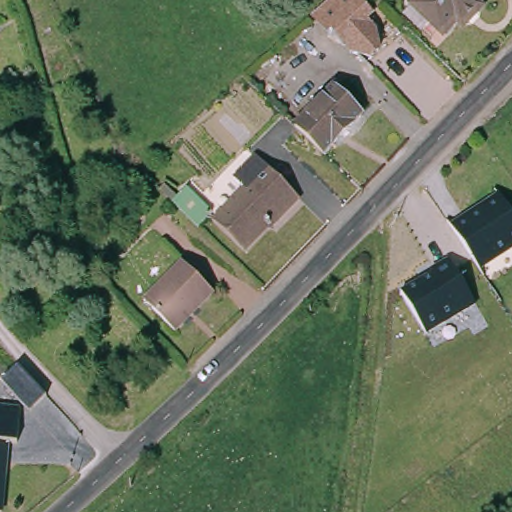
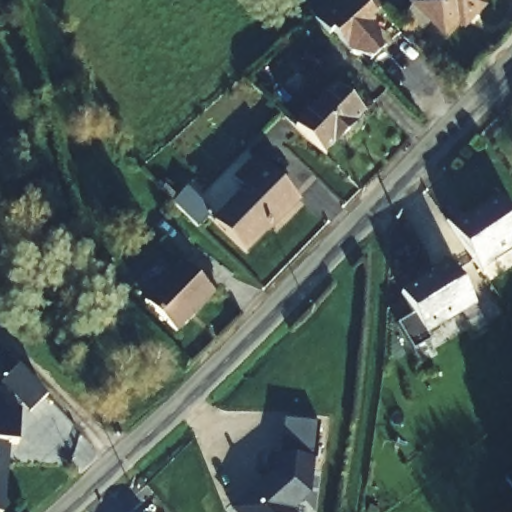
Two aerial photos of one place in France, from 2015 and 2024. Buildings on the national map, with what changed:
unchanged [(386,7),(369,25),(378,35),(380,53),(372,62),(361,63),(313,17),(330,0),(338,0),(340,1),(341,0),(380,0),(386,7)]
unchanged [(417,0),(476,0),(475,1),(480,8),(464,27),(457,20),(444,35),(413,5),(417,0)]
unchanged [(332,88),(362,116),(324,156),(295,127),(332,88)]
unchanged [(275,225),(249,251),(220,221),(249,190),(237,179),(260,156),(293,189),(300,195),(294,201),(273,222),(275,225)]
unchanged [(192,189),(217,214),(203,229),(177,204),(192,189)]
unchanged [(512,212),(512,250),(480,270),(447,222),(461,215),(465,218),(500,193),(512,212)]
unchanged [(427,335),(400,292),(431,273),(430,270),(450,259),(477,305),(427,335)]
unchanged [(180,265),(211,295),(175,333),(144,302),(180,265)]
unchanged [(38,393),(24,406),(0,381),(0,374),(12,363),(39,393),(38,393)]
unchanged [(10,440),(0,440),(0,403),(10,403),(10,440)]
new [(294,511),(294,512),(233,512),(232,511),(275,472),(285,420),(319,423),(315,460),(312,492),(294,511)]

